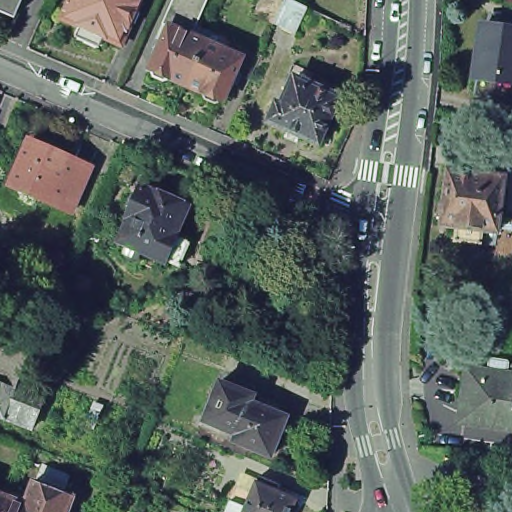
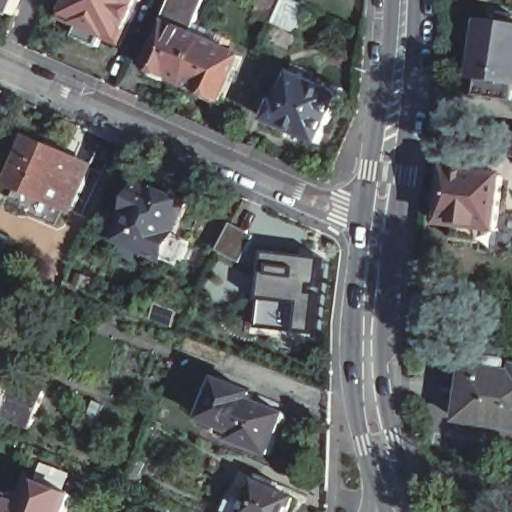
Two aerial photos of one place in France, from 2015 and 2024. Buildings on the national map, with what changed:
unchanged [(22,13),(0,4),(0,0),(28,0),(22,13)]
unchanged [(127,44),(109,36),(105,47),(81,36),(86,26),(67,18),(76,0),(147,0),(127,44)]
unchanged [(225,100),(225,102),(220,103),(211,99),(210,95),(210,93),(192,85),(173,77),(172,79),(169,81),(159,76),(157,72),(158,71),(155,69),(168,41),(162,39),(180,0),(212,0),(201,25),(215,32),(231,39),(227,48),(248,57),(228,101),(225,100)]
unchanged [(296,38),(275,28),(275,27),(258,20),(267,0),(280,0),(286,2),(308,12),(296,38)]
unchanged [(483,75),(480,75),(488,26),(498,27),(500,14),(512,16),(512,100),(480,95),(483,75)]
unchanged [(323,80),(344,89),(341,96),(320,144),(268,121),(277,101),(282,104),(292,79),(295,75),(290,73),(293,64),(315,73),(311,82),(320,86),(323,80)]
unchanged [(491,129),(512,132),(512,155),(488,151),(491,129)]
unchanged [(96,167),(77,211),(16,184),(35,140),(96,167)]
unchanged [(462,226),(447,224),(448,220),(446,220),(444,217),(446,204),(448,202),(450,202),(454,170),(510,177),(503,231),(487,229),(486,243),(461,240),(462,226)]
unchanged [(196,203),(184,231),(185,232),(184,234),(197,239),(187,262),(174,257),(173,259),(127,238),(137,215),(135,214),(149,183),(161,189),(162,188),(196,203)]
new [(256,234),(245,263),(222,251),(234,225),(256,234)]
unchanged [(18,238),(7,265),(0,263),(0,230),(18,238)]
new [(328,258),(320,338),(261,333),(270,253),(328,258)]
unchanged [(24,272),(15,295),(3,290),(12,267),(24,272)]
unchanged [(12,416),(0,412),(0,360),(5,347),(11,330),(41,342),(35,359),(29,373),(27,376),(55,386),(39,426),(12,416)]
unchanged [(490,372),(492,361),(506,363),(506,367),(512,368),(512,428),(460,421),(468,368),(490,372)]
unchanged [(222,422),(205,415),(220,376),(255,389),(252,397),(278,407),(281,407),(284,408),(285,410),(286,413),(286,415),(286,418),(284,420),(271,450),(235,435),(220,429),(222,422)]
unchanged [(35,475),(75,490),(66,512),(3,512),(11,491),(26,497),(35,475)]
unchanged [(236,485),(253,492),(260,475),(279,483),(276,490),(296,499),(290,512),(225,512),(230,500),(236,485)]
unchanged [(11,491),(3,512),(0,512),(0,487),(11,491)]

